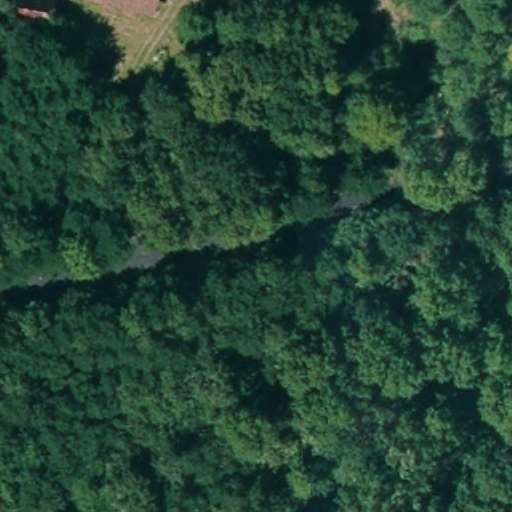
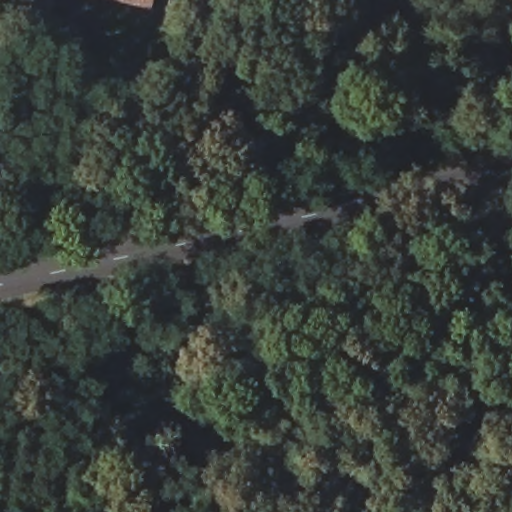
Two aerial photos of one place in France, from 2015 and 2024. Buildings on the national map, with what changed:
unchanged [(46,32),(0,15),(0,0),(58,0),(46,32)]

